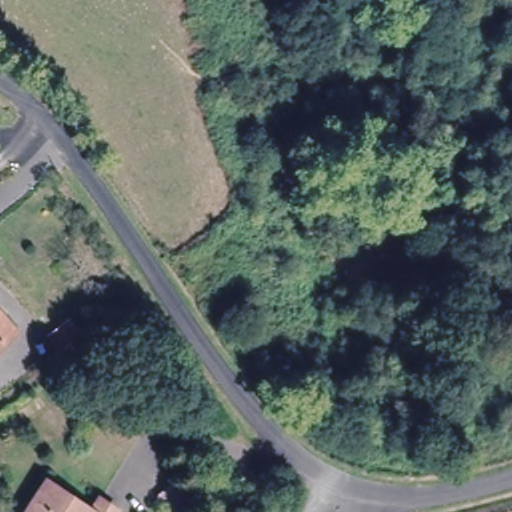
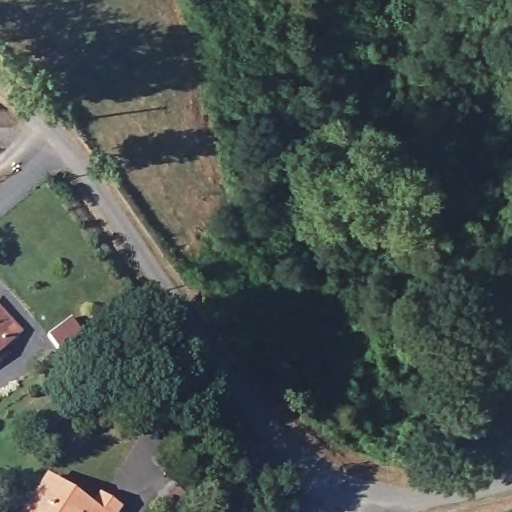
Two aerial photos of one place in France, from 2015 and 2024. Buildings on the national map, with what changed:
unchanged [(19,332),(4,347),(0,343),(0,308),(19,332)]
unchanged [(68,323),(80,340),(57,355),(46,340),(68,323)]
unchanged [(46,482),(86,508),(95,500),(111,512),(27,512),(46,482)]

